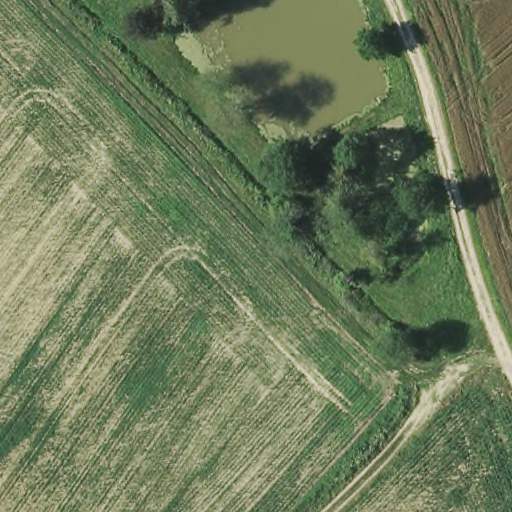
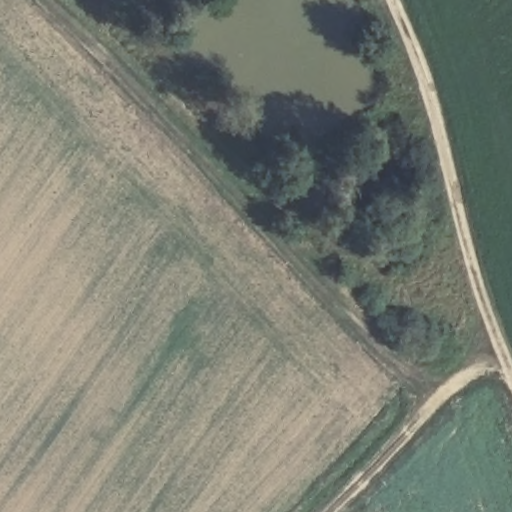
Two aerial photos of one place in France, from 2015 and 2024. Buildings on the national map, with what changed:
unchanged [(183,3),(181,0),(185,0),(183,3)]

